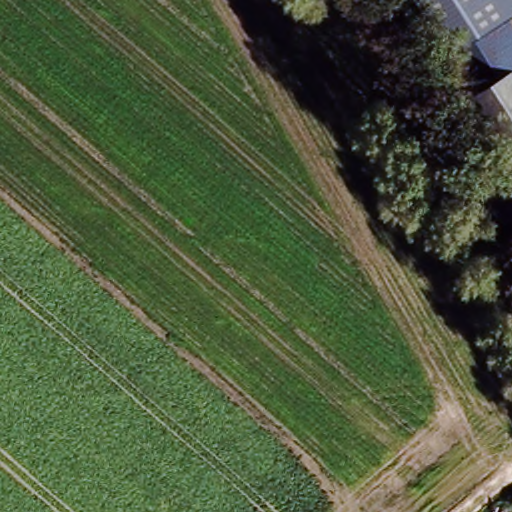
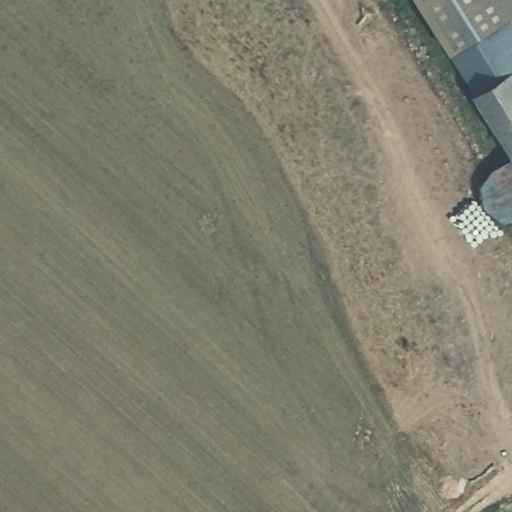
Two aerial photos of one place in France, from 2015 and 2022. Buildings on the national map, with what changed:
unchanged [(441,58),(404,0),(512,0),(512,13),(498,21),(455,50),(441,58)]
unchanged [(498,21),(512,42),(512,66),(499,75),(481,87),(455,50),(498,21)]
unchanged [(481,87),(499,75),(512,66),(512,163),(467,97),(481,87)]
unchanged [(503,166),(511,168),(512,168),(512,219),(509,221),(508,221),(498,221),(489,218),(486,215),(481,211),(476,201),(475,199),(475,191),(479,178),(492,168),(503,166)]

